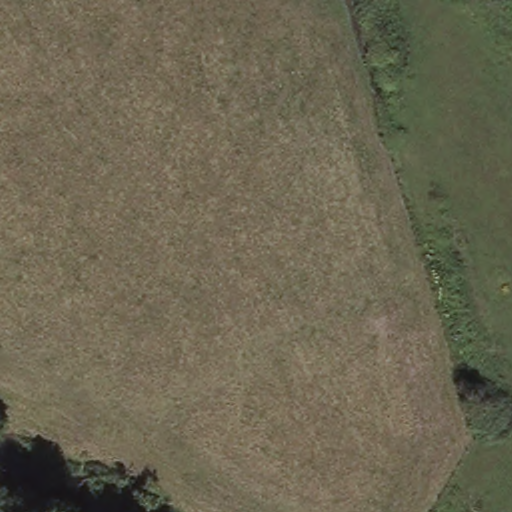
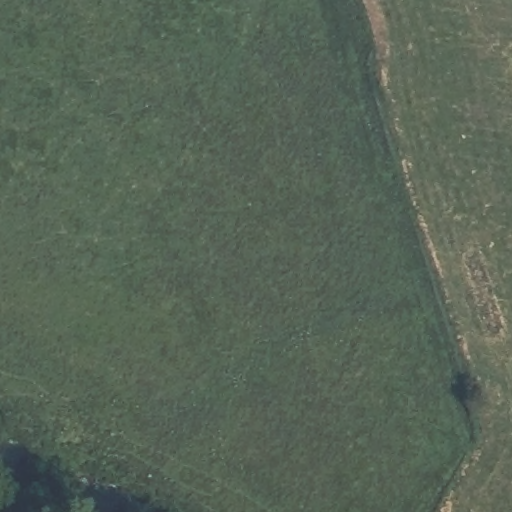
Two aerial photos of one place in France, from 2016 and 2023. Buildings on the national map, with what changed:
[]

